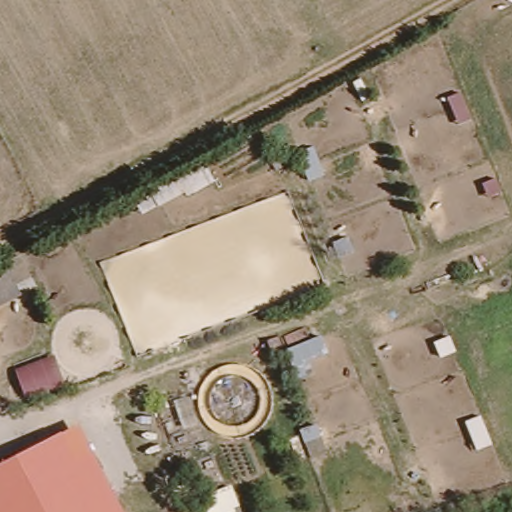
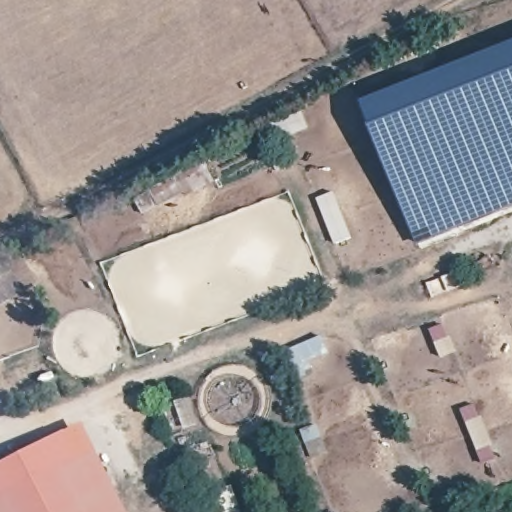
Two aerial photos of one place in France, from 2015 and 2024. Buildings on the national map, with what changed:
new [(512,42),(512,208),(416,246),(359,103),(512,42)]
unchanged [(0,307),(0,264),(9,261),(26,293),(0,307)]
unchanged [(83,422),(126,512),(0,512),(0,463),(83,422)]
new [(208,512),(202,498),(231,485),(243,512),(208,512)]

